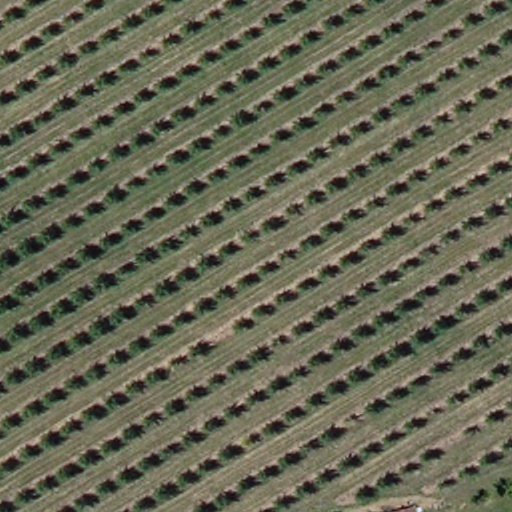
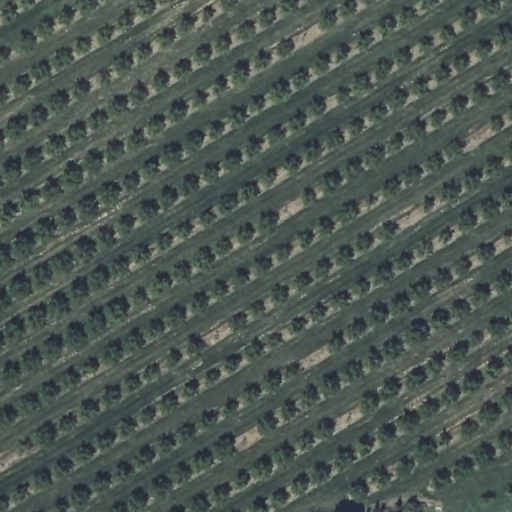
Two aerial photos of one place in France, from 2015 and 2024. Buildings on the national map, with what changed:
unchanged [(417,506),(419,512),(393,512),(417,506)]

